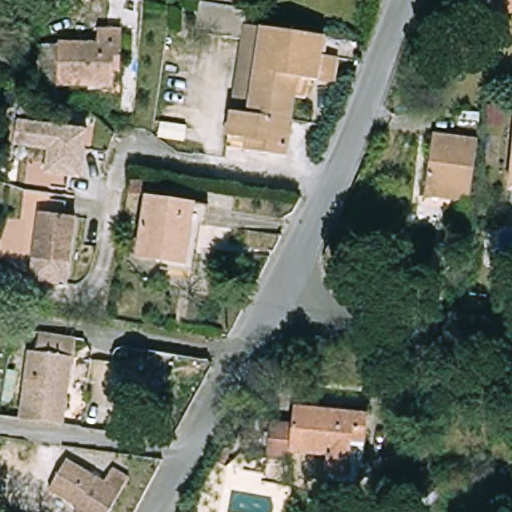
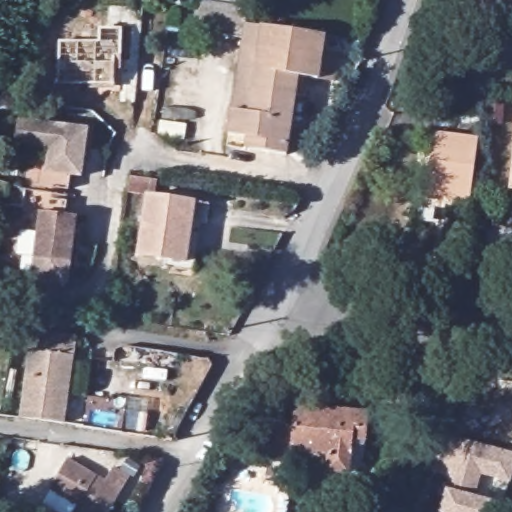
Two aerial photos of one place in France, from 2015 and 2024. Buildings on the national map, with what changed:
unchanged [(250,21),(247,37),(196,30),(200,0),(220,0),(252,5),(250,21)]
unchanged [(485,21),(478,0),(512,0),(512,12),(485,21)]
unchanged [(328,33),(323,78),(302,76),(289,154),(248,148),(250,137),(232,134),(247,37),(250,21),(328,33)]
unchanged [(46,60),(46,44),(67,44),(68,40),(108,40),(109,27),(131,27),(130,57),(124,57),(123,82),(69,82),(67,80),(46,80),(46,60)]
unchanged [(57,186),(42,184),(34,182),(30,181),(37,137),(56,140),(59,119),(93,124),(87,171),(76,169),(74,183),(58,181),(58,187),(57,186)]
unchanged [(424,188),(432,134),(478,139),(470,201),(452,198),(423,195),(424,188)]
unchanged [(57,193),(73,196),(71,209),(82,211),(72,278),(37,272),(47,205),(39,204),(42,184),(57,186),(58,187),(57,193)]
unchanged [(191,272),(158,267),(159,258),(133,254),(142,195),(190,202),(200,204),(191,272)]
unchanged [(75,362),(71,362),(61,425),(21,420),(31,355),(37,356),(41,336),(77,342),(75,362)]
unchanged [(327,483),(328,471),(329,452),(293,449),(293,458),(270,456),(274,421),(296,423),(298,405),(371,412),(368,441),(363,440),(362,455),(358,486),(327,483)]
new [(442,512),(452,479),(433,473),(443,437),(508,456),(512,457),(512,470),(509,481),(502,479),(478,472),(471,499),(495,506),(507,509),(506,512),(442,512)]
unchanged [(116,467),(131,477),(109,512),(83,512),(76,508),(79,503),(53,486),(70,457),(108,480),(116,467)]

